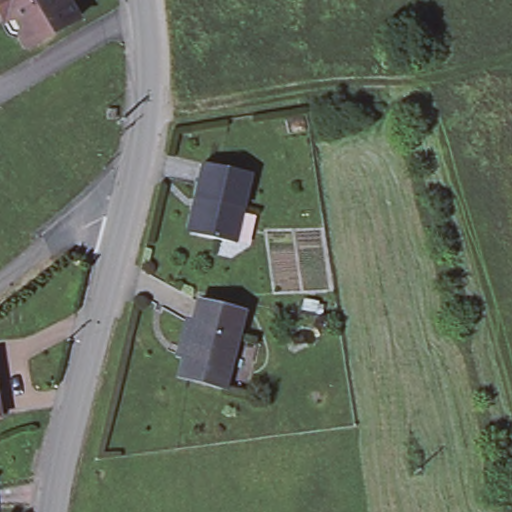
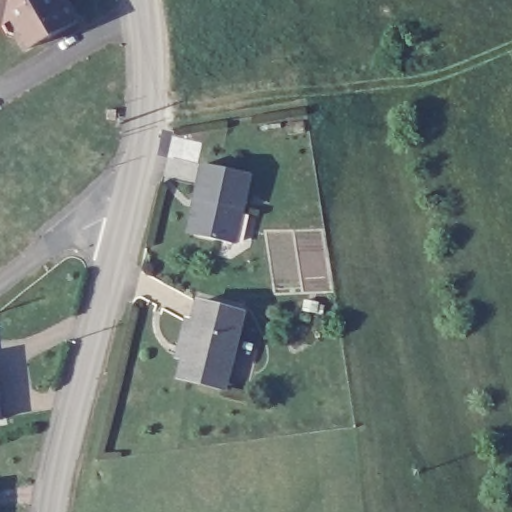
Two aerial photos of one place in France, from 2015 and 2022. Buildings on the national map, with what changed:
unchanged [(29,50),(20,33),(2,28),(0,24),(0,0),(68,0),(80,21),(29,50)]
unchanged [(250,168),(245,234),(195,230),(190,224),(198,163),(250,168)]
unchanged [(244,316),(224,389),(179,377),(185,354),(178,352),(187,321),(194,323),(200,303),(244,316)]

